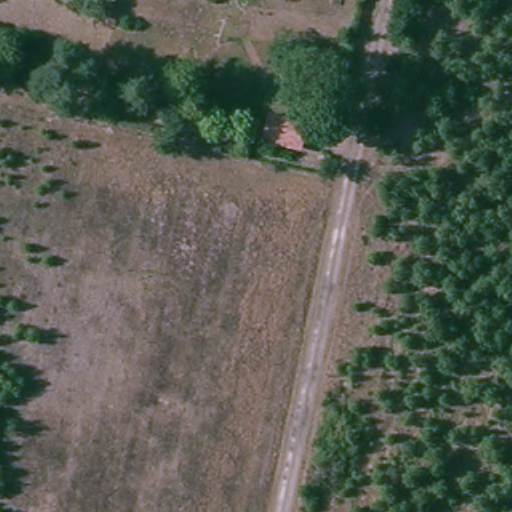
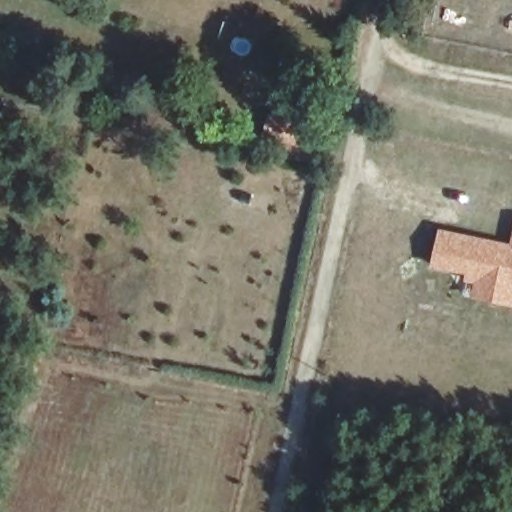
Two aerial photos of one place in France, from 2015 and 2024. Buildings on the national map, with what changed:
new [(309,124),(302,153),(262,142),(270,112),(309,124)]
new [(509,243),(512,231),(512,307),(461,296),(465,276),(430,268),(439,227),(509,243)]

